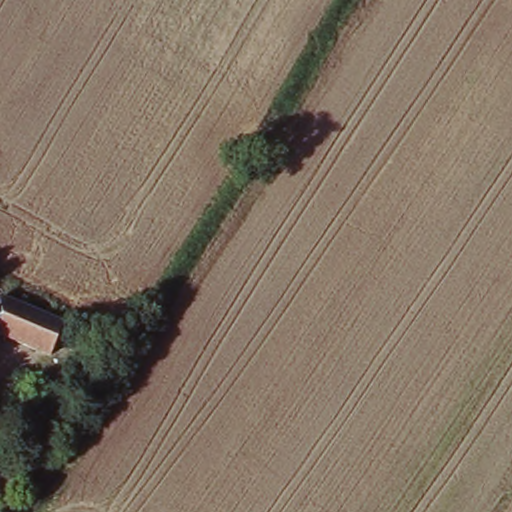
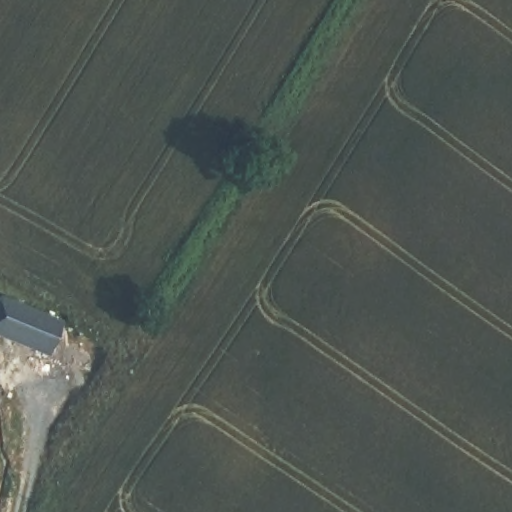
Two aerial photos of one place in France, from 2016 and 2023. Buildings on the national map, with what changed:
unchanged [(48,360),(0,340),(0,305),(63,328),(48,360)]

